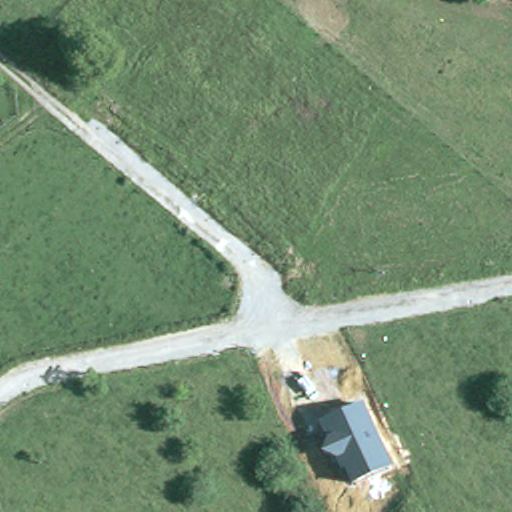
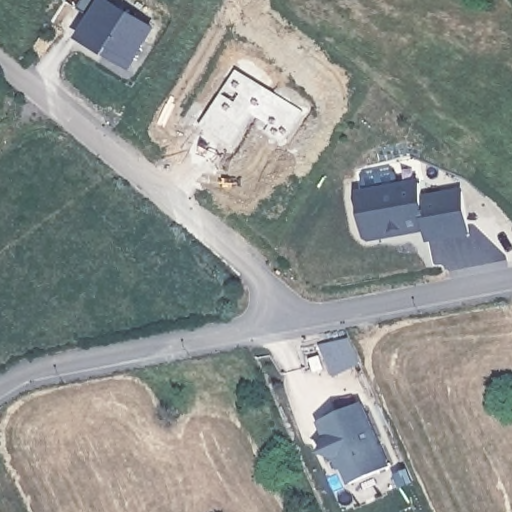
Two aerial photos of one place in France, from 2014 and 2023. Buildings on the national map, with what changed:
new [(87,20),(75,12),(83,0),(115,0),(114,3),(155,28),(130,70),(77,38),(87,20)]
new [(356,193),(419,181),(423,198),(462,190),(470,234),(427,242),(425,231),(366,244),(356,193)]
unchanged [(392,465),(349,486),(338,461),(322,453),(325,438),(319,422),(361,401),(392,465)]

